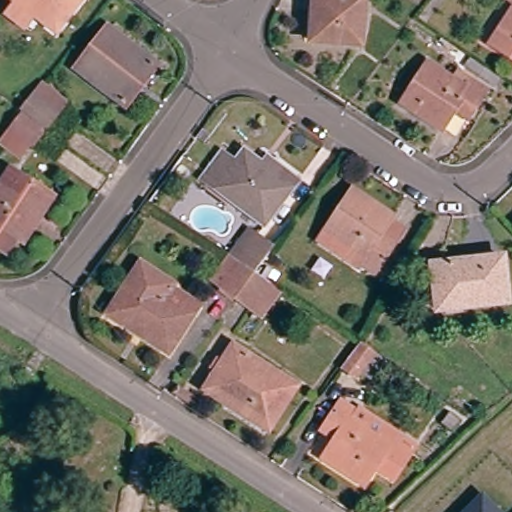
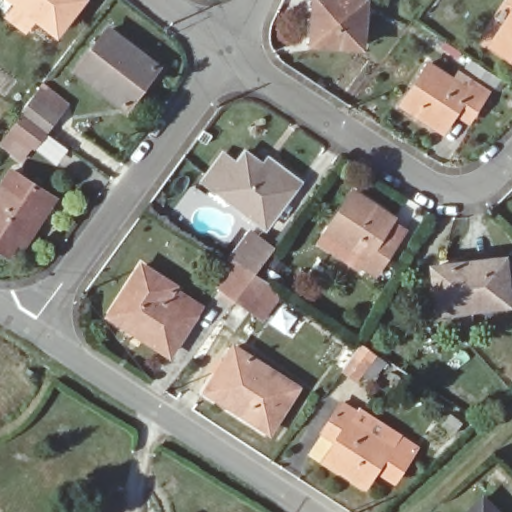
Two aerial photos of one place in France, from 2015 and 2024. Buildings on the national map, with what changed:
unchanged [(33,13),(23,26),(5,12),(14,0),(79,0),(56,30),(33,13)]
unchanged [(364,0),(360,50),(310,46),(314,0),(364,0)]
unchanged [(512,55),(495,45),(512,17),(512,55)]
unchanged [(107,29),(156,66),(124,107),(76,72),(107,29)]
unchanged [(423,64),(448,81),(453,74),(481,92),(463,119),(451,111),(437,131),(397,104),(423,64)]
unchanged [(35,92),(61,112),(49,127),(23,107),(35,92)]
unchanged [(34,146),(11,127),(25,110),(49,127),(34,146)]
unchanged [(221,153),(233,162),(242,149),(261,163),(260,166),(293,190),(265,228),(200,181),(221,153)]
unchanged [(10,172),(51,199),(41,214),(34,210),(5,254),(0,250),(0,187),(10,172)]
unchanged [(392,217),(405,227),(391,249),(374,275),(360,266),(364,258),(325,232),(352,192),(392,217)]
unchanged [(260,318),(233,297),(210,280),(227,258),(234,263),(256,236),(271,247),(264,257),(250,275),(280,292),(260,318)]
unchanged [(431,265),(504,257),(510,305),(436,313),(431,265)]
unchanged [(140,266),(173,287),(171,290),(198,307),(166,355),(138,337),(140,333),(109,313),(140,266)]
unchanged [(359,345),(385,362),(370,382),(360,374),(356,380),(340,368),(359,345)]
unchanged [(232,346),(297,387),(269,432),(203,391),(232,346)]
unchanged [(339,407),(354,417),(350,425),(392,451),(398,442),(414,452),(392,485),(375,474),(363,492),(321,464),(334,443),(322,435),(339,407)]
unchanged [(483,491),(503,512),(461,512),(483,491)]

